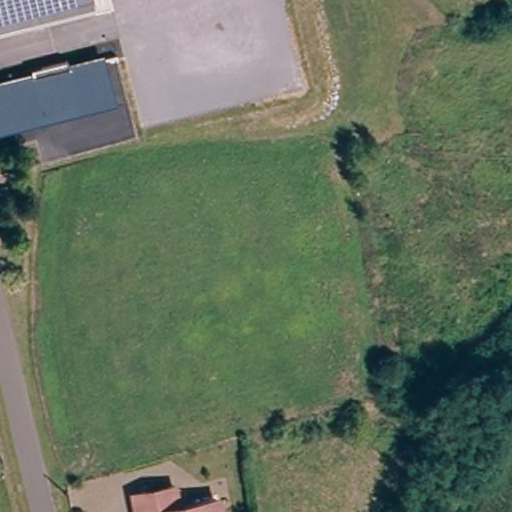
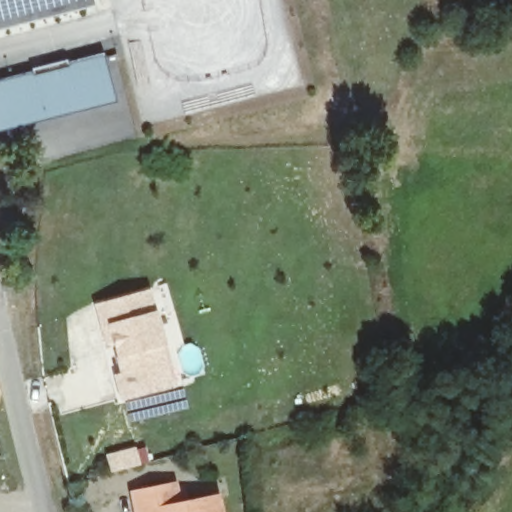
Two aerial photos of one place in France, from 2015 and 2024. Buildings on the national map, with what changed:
unchanged [(92,0),(94,6),(0,32),(0,0),(92,0)]
unchanged [(103,53),(116,103),(0,133),(0,80),(103,53)]
new [(156,314),(165,347),(175,387),(120,402),(113,378),(120,376),(116,357),(113,345),(104,348),(94,306),(150,291),(156,314)]
unchanged [(140,493),(180,486),(184,503),(217,497),(220,512),(143,512),(140,493)]

